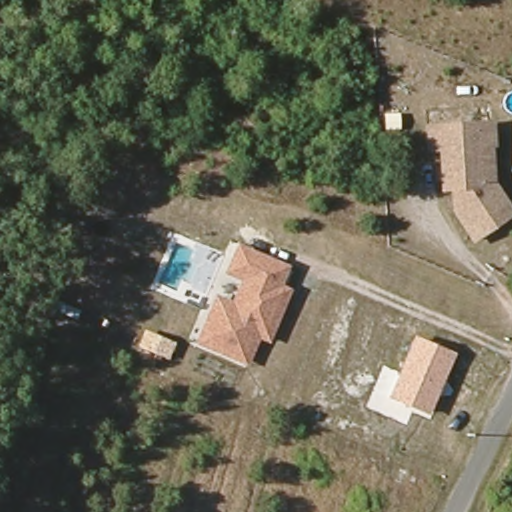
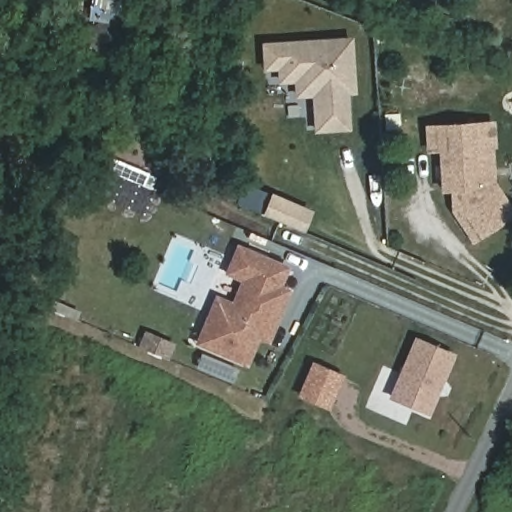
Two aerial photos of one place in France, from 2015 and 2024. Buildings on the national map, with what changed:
new [(122,5),(114,4),(112,19),(117,22),(120,25),(121,30),(121,35),(119,40),(116,43),(111,46),(106,47),(99,45),(95,41),(92,37),(91,32),(92,27),(95,22),(101,18),(107,17),(107,14),(97,12),(98,0),(123,0),(122,5)]
new [(354,40),(356,86),(349,87),(351,127),(320,130),(318,93),(301,94),(299,65),(270,67),(268,44),(354,40)]
unchanged [(455,211),(453,189),(444,190),(441,149),(429,150),(427,127),(476,124),(491,123),(492,146),(490,146),(492,183),(501,195),(512,211),(512,216),(474,239),(455,211)]
new [(278,195),(315,210),(307,229),(270,213),(278,195)]
unchanged [(216,296),(233,302),(242,281),(227,275),(240,244),(291,266),(283,285),(293,289),(272,343),(260,339),(250,366),(195,345),(216,296)]
unchanged [(430,415),(388,398),(415,335),(455,352),(430,415)]
new [(330,410),(296,396),(311,361),(345,375),(330,410)]

